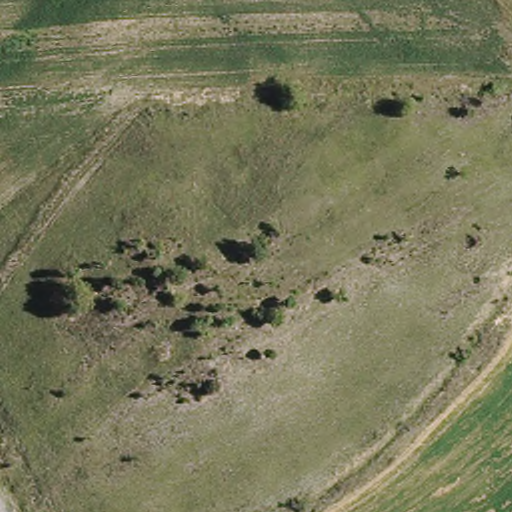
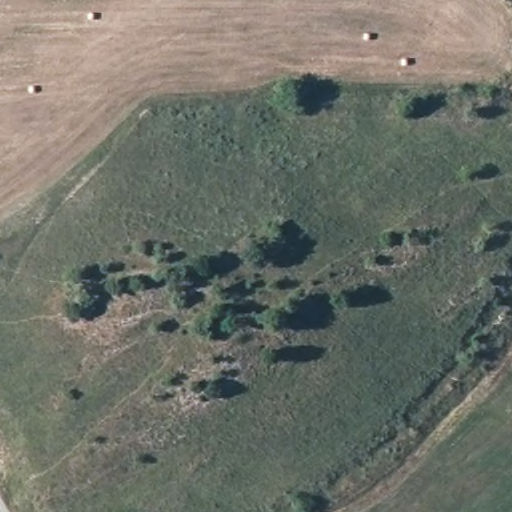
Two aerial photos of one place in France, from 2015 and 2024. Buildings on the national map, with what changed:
[]

